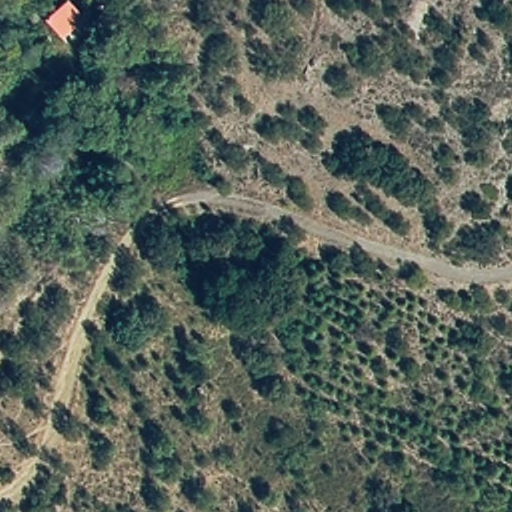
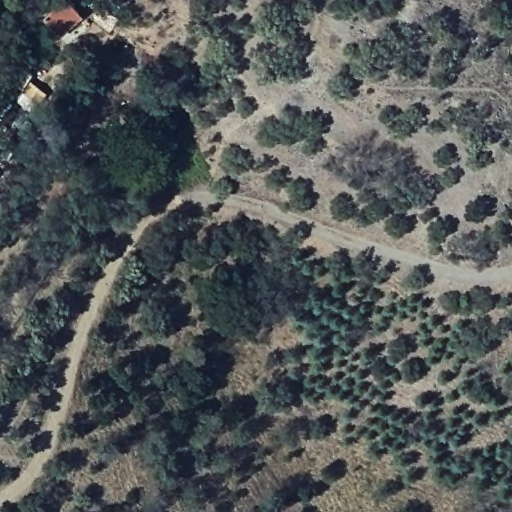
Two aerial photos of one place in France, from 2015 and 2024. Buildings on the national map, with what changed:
unchanged [(40,20),(65,0),(71,0),(86,14),(56,36),(40,20)]

